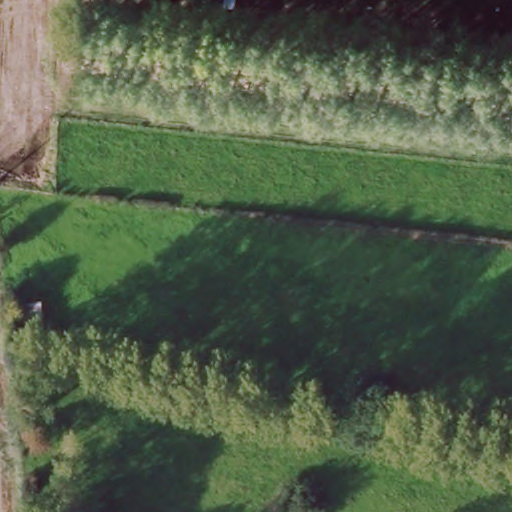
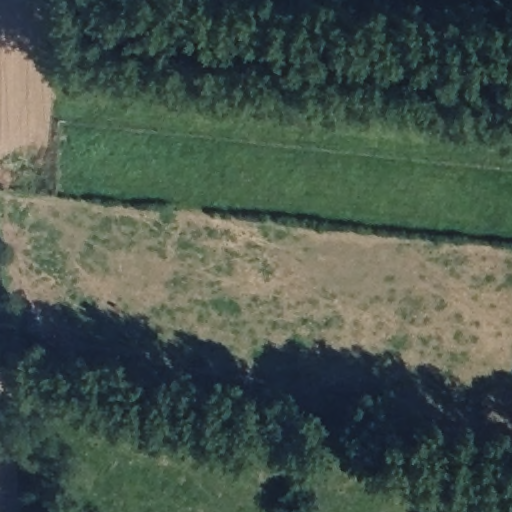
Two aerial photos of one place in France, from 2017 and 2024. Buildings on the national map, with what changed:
unchanged [(223,5),(189,2),(189,0),(224,0),(223,5)]

